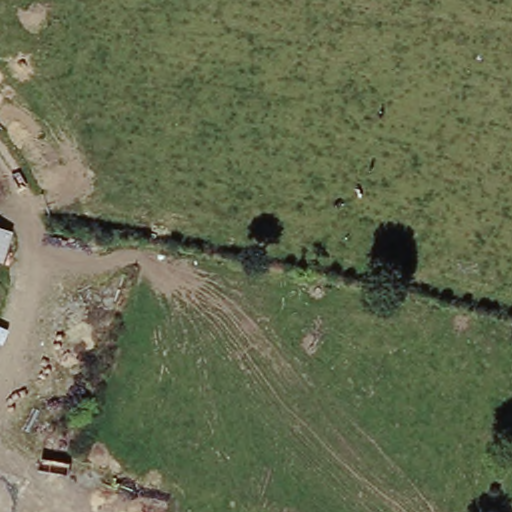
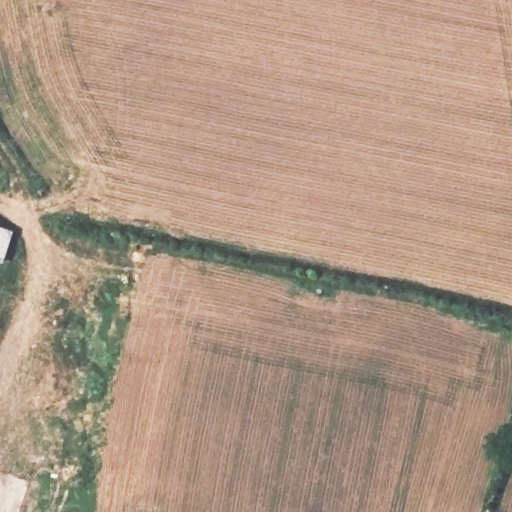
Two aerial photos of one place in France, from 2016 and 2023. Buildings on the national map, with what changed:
unchanged [(4,263),(0,262),(0,222),(13,226),(4,263)]

